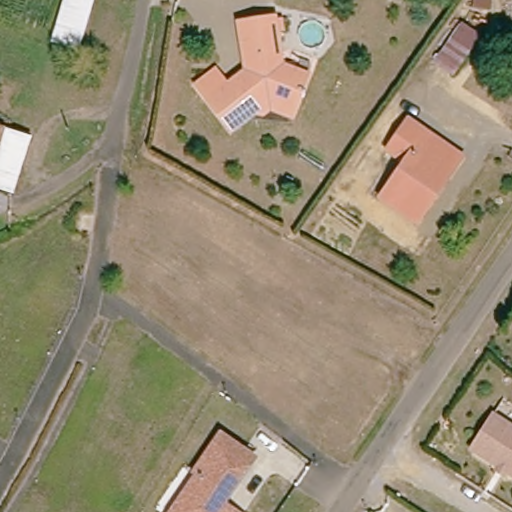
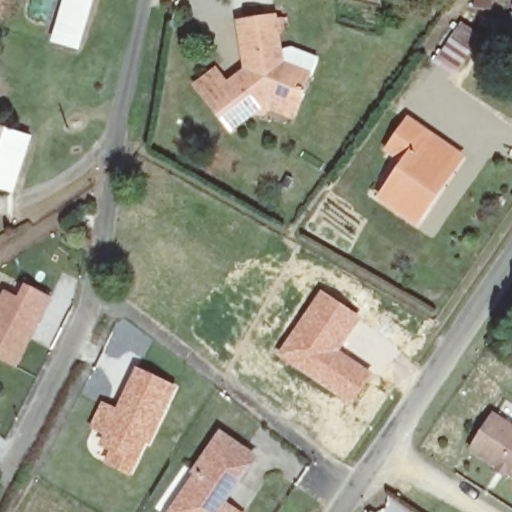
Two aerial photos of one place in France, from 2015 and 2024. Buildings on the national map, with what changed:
unchanged [(54,78),(69,0),(95,0),(80,82),(54,78)]
unchanged [(469,2),(469,0),(488,0),(487,7),(469,2)]
unchanged [(272,108),(263,114),(258,107),(230,129),(210,102),(244,74),(237,23),(273,16),(274,21),(279,21),(281,37),(277,39),(281,66),(307,76),(292,107),(289,116),(272,108)]
unchanged [(462,83),(443,72),(471,29),(489,41),(462,83)]
unchanged [(443,190),(420,224),(385,198),(409,162),(393,151),(413,124),(427,134),(457,155),(448,169),(437,185),(443,190)]
unchanged [(0,150),(0,134),(5,136),(0,150)]
unchanged [(0,186),(0,150),(5,136),(27,142),(13,190),(0,186)]
new [(16,364),(0,356),(0,299),(5,291),(18,297),(24,285),(51,297),(16,364)]
new [(321,288),(362,317),(340,350),(373,373),(350,406),(276,354),(321,288)]
new [(101,401),(115,407),(136,366),(179,386),(149,446),(147,445),(130,477),(101,462),(106,451),(97,446),(102,436),(88,427),(101,401)]
unchanged [(504,467),(477,451),(498,417),(512,425),(512,472),(510,476),(502,471),(504,467)]
unchanged [(244,512),(176,512),(175,512),(204,471),(201,469),(226,432),(259,455),(234,492),(228,501),(244,512)]

